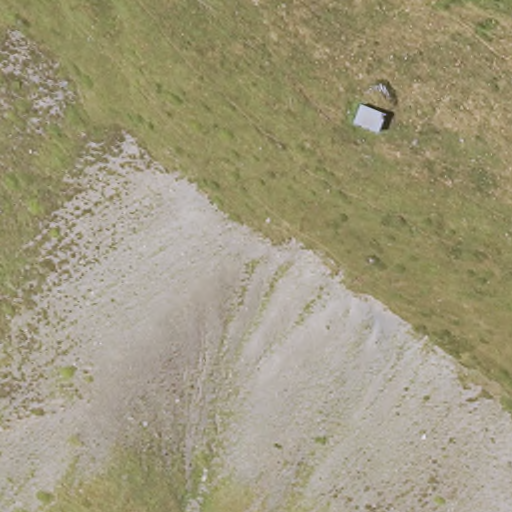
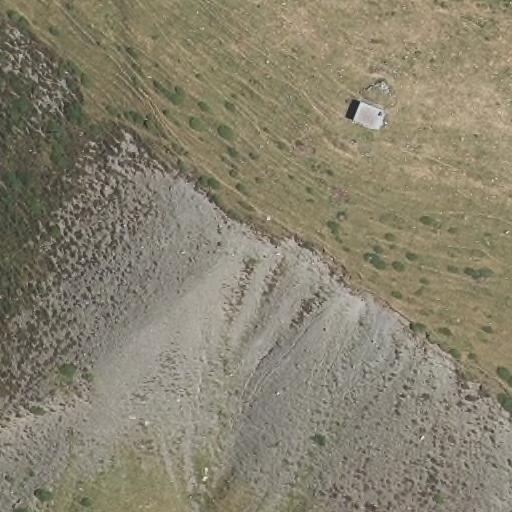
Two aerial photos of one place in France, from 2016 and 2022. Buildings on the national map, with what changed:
unchanged [(385,109),(378,129),(365,122),(351,117),(359,96),(385,109)]

